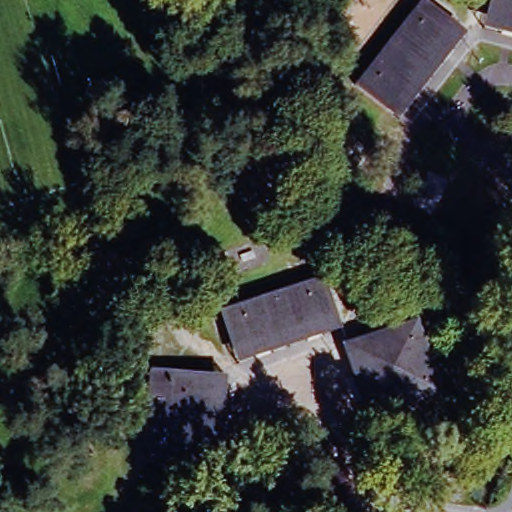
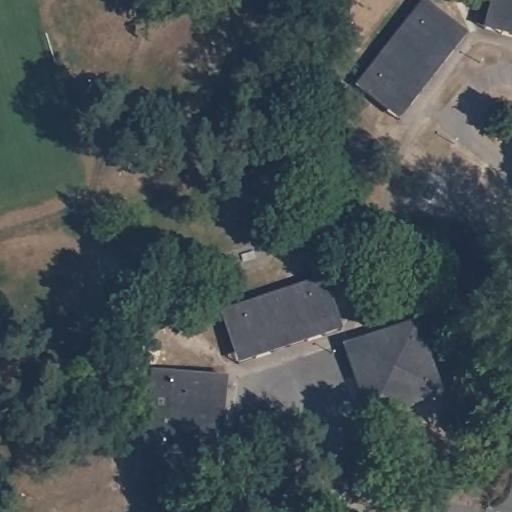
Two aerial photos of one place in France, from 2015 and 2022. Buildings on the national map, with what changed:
unchanged [(385,111),(353,86),(420,0),(453,25),(385,111)]
unchanged [(490,0),(512,0),(512,21),(486,15),(490,0)]
unchanged [(482,30),(486,15),(512,21),(512,38),(482,30)]
unchanged [(466,35),(398,120),(385,111),(453,25),(466,35)]
unchanged [(231,350),(218,312),(323,279),(336,317),(231,350)]
unchanged [(340,330),(236,364),(231,350),(336,317),(340,330)]
unchanged [(439,394),(370,417),(346,347),(416,326),(439,394)]
unchanged [(200,483),(140,477),(149,370),(210,376),(200,483)]
unchanged [(226,378),(217,485),(200,483),(210,376),(226,378)]

